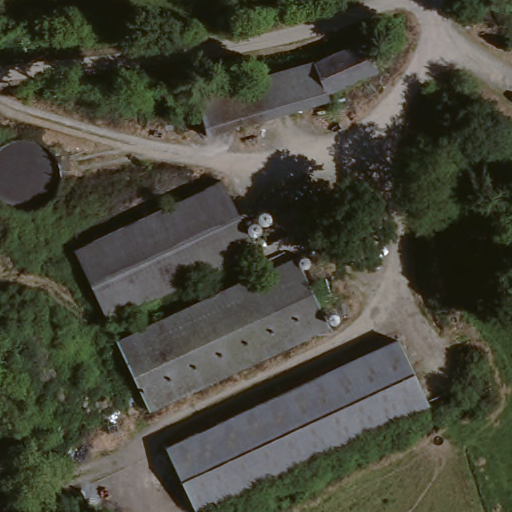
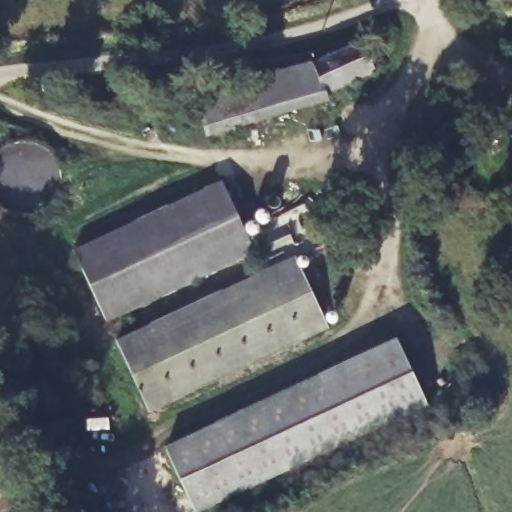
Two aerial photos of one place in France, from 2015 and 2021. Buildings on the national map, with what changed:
unchanged [(278,84),(311,71),(359,51),(370,80),(285,112),(278,84)]
unchanged [(169,135),(163,97),(241,78),(239,93),(234,127),(169,135)]
unchanged [(239,93),(278,84),(285,112),(286,119),(234,127),(239,93)]
unchanged [(99,323),(69,253),(221,188),(248,260),(99,323)]
unchanged [(142,413),(112,343),(296,265),(324,335),(142,413)]
unchanged [(186,511),(159,448),(399,345),(425,409),(186,511)]

